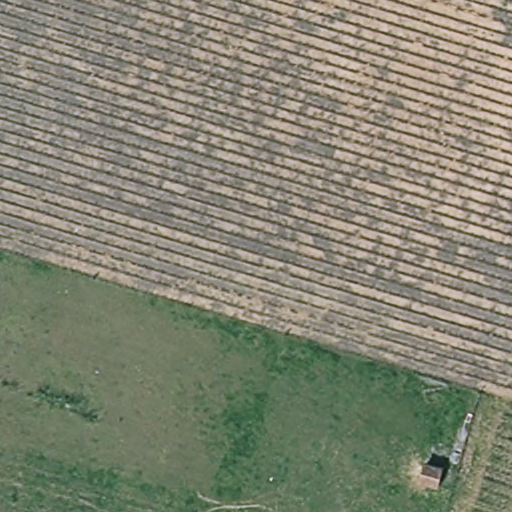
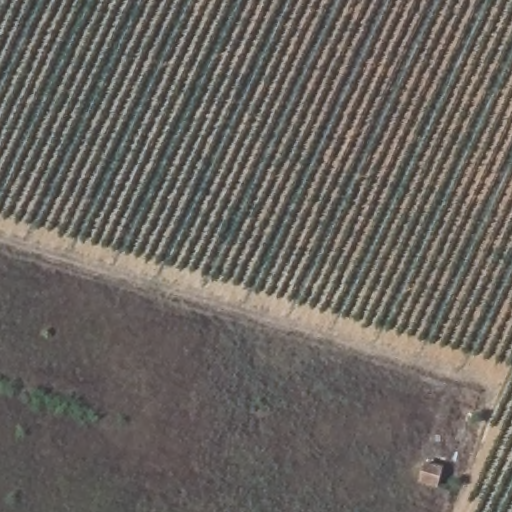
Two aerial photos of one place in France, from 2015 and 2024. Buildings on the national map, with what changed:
unchanged [(445,466),(440,488),(420,483),(426,461),(445,466)]

